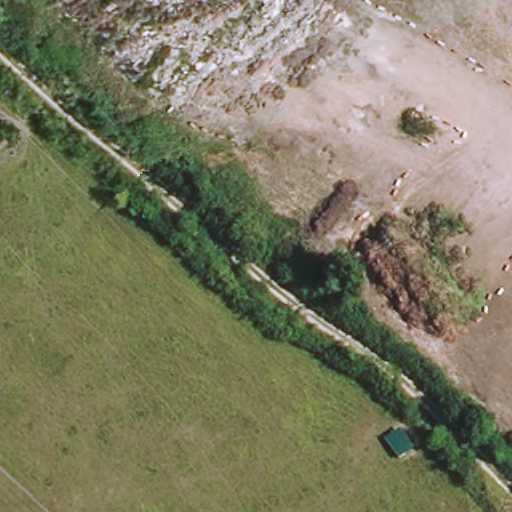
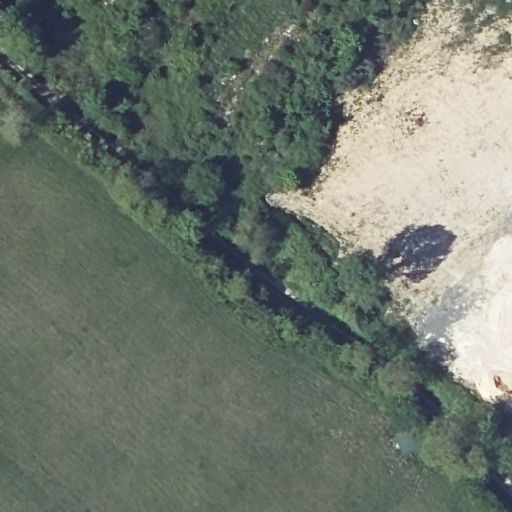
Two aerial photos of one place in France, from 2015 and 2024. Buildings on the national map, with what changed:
[]

